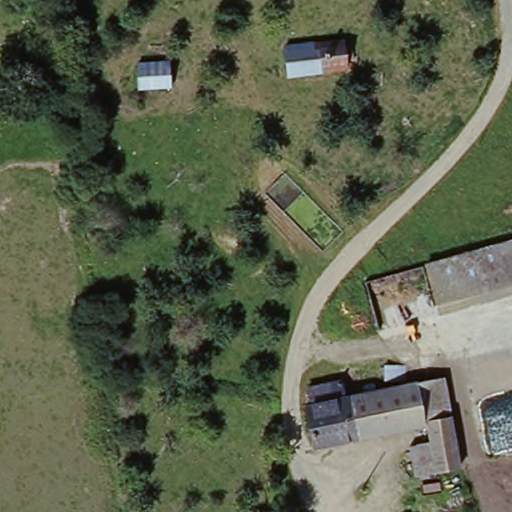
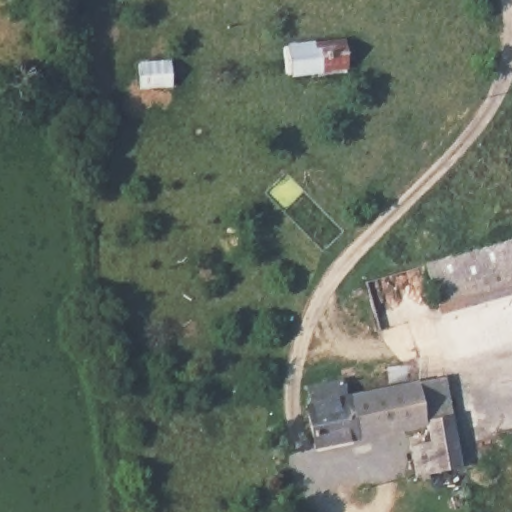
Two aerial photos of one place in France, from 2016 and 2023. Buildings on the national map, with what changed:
unchanged [(353,35),(357,71),(275,83),(270,47),(353,35)]
unchanged [(170,63),(171,88),(141,88),(141,65),(170,63)]
unchanged [(427,267),(512,244),(512,286),(440,305),(427,267)]
unchanged [(303,409),(308,408),(303,391),(339,383),(344,399),(451,376),(462,448),(466,465),(416,476),(408,445),(427,441),(425,428),(314,450),(303,409)]

